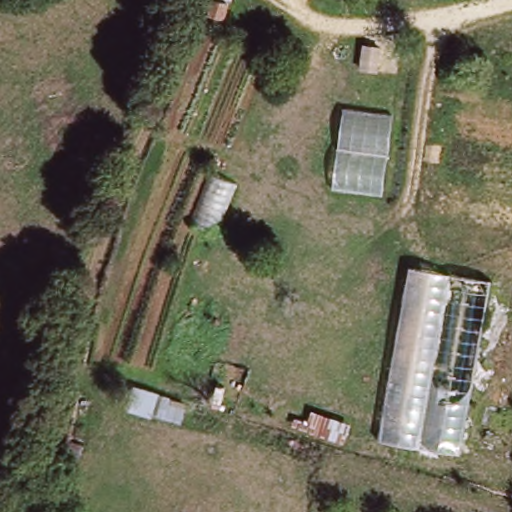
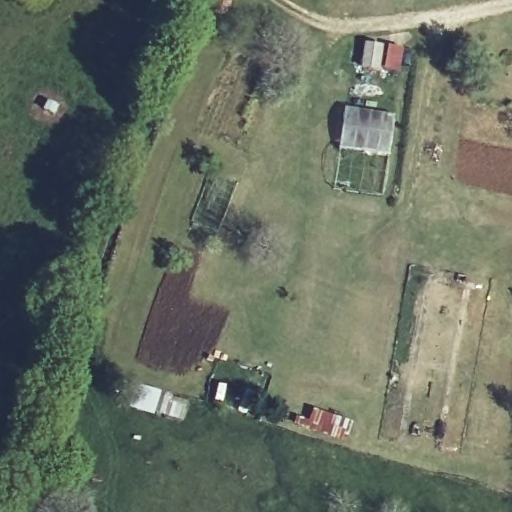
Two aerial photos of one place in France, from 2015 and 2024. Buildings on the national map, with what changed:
unchanged [(230,0),(227,14),(209,10),(211,0),(230,0)]
unchanged [(394,114),(382,196),(332,187),(344,106),(394,114)]
demolished [(405,265),(410,266),(385,438),(374,436),(405,265)]
demolished [(489,280),(457,450),(385,438),(410,266),(489,280)]
unchanged [(170,395),(163,414),(151,413),(150,416),(125,408),(134,384),(170,395)]

